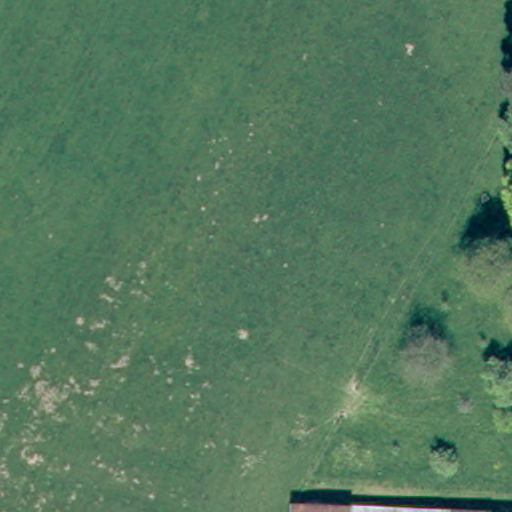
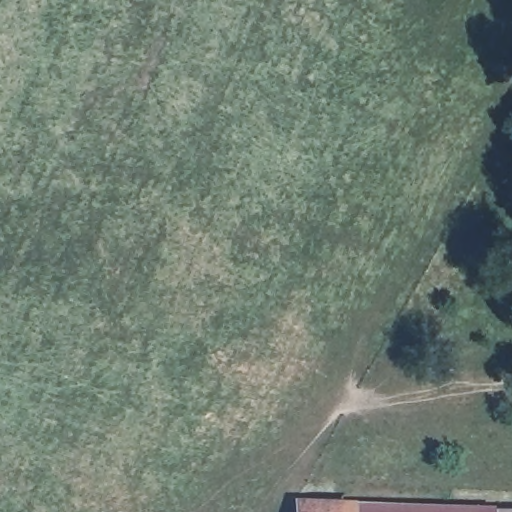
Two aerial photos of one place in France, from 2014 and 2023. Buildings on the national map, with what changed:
unchanged [(294,512),(294,510),(356,512),(294,512)]

